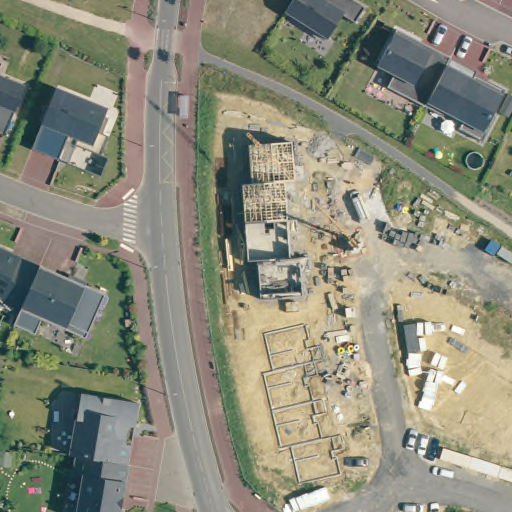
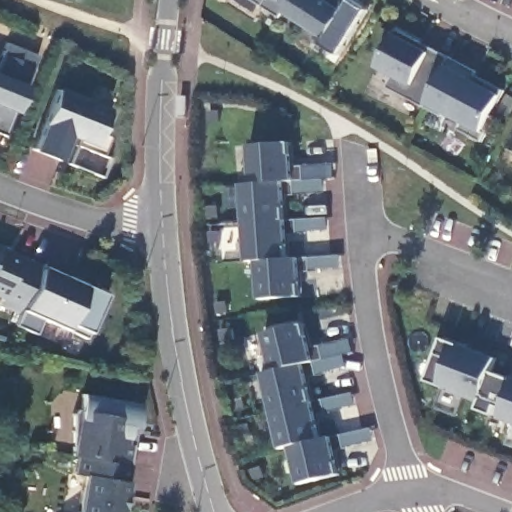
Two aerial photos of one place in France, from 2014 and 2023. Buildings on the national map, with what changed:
new [(253,0),(293,0),(284,12),(280,17),(253,0)]
unchanged [(308,29),(285,14),(294,0),(326,0),(353,0),(366,9),(356,24),(343,16),(327,40),(308,29)]
unchanged [(388,89),(394,75),(378,67),(397,30),(422,43),(419,48),(430,54),(433,49),(451,59),(435,90),(425,108),(388,89)]
unchanged [(478,72),(473,81),(486,89),(489,83),(506,91),(493,116),(496,118),(483,144),(459,130),(463,122),(446,113),(443,117),(425,108),(435,90),(451,59),(478,72)]
unchanged [(25,87),(4,136),(0,134),(0,77),(25,87)]
unchanged [(109,111),(99,135),(106,138),(99,154),(65,141),(59,159),(33,150),(44,126),(56,89),(109,111)]
new [(259,300),(256,261),(248,261),(241,185),(251,184),(249,145),(291,142),(293,167),(333,164),(334,177),(325,178),(325,191),(285,196),(287,220),(328,217),(329,230),(287,235),(288,258),(300,257),(341,255),(341,266),(300,273),(302,296),(259,300)]
unchanged [(0,305),(0,304),(2,298),(0,297),(0,249),(40,266),(26,300),(25,302),(20,314),(0,305)]
unchanged [(20,314),(25,302),(26,300),(40,266),(106,295),(86,340),(43,320),(36,335),(14,325),(20,314)]
new [(300,485),(290,447),(282,448),(263,373),(272,370),(263,335),(305,323),(312,348),(352,340),(354,351),(345,355),(348,366),(308,378),(315,401),(354,392),(357,405),(318,416),(321,438),(333,436),(373,427),(376,440),(335,451),(340,473),(300,485)]
new [(502,408),(497,406),(494,415),(478,408),(481,400),(469,396),(459,416),(437,407),(448,387),(428,380),(444,338),(497,358),(492,372),(512,379),(512,422),(501,418),(502,408)]
unchanged [(76,456),(70,455),(72,449),(72,415),(72,414),(72,413),(73,412),(74,411),(75,410),(76,410),(77,410),(78,410),(81,394),(139,404),(135,427),(130,426),(128,435),(133,436),(128,465),(76,456)]
new [(512,439),(512,444),(509,443),(512,439)]
unchanged [(120,512),(77,512),(83,476),(73,475),(76,456),(128,465),(120,512)]

